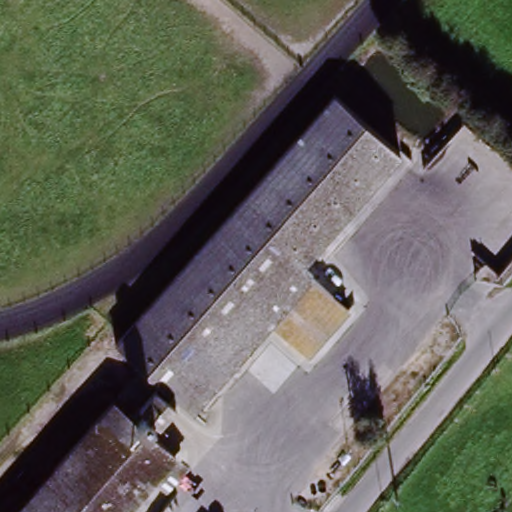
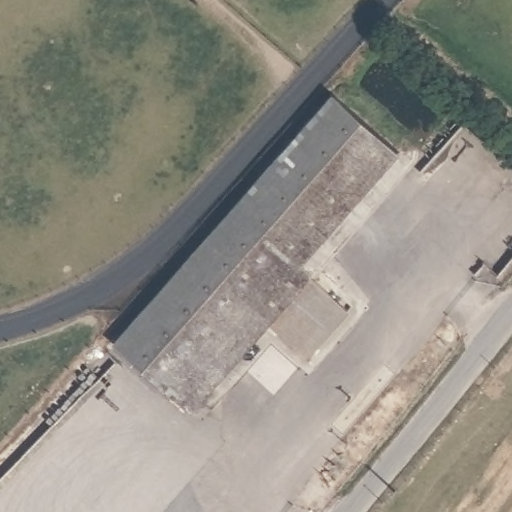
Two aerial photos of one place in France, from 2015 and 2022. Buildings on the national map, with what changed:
unchanged [(116,341),(340,100),(404,161),(302,269),(347,316),(305,360),(270,327),(196,405),(190,412),(130,355),(116,341)]
demolished [(150,386),(171,406),(147,432),(125,412),(150,386)]
demolished [(150,478),(119,512),(7,512),(112,399),(125,412),(147,432),(172,456),(150,478)]

